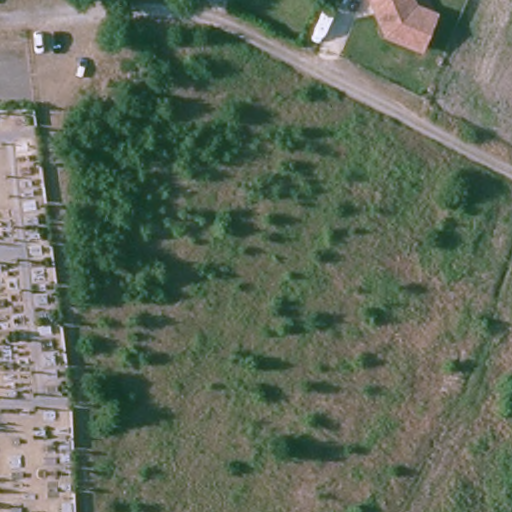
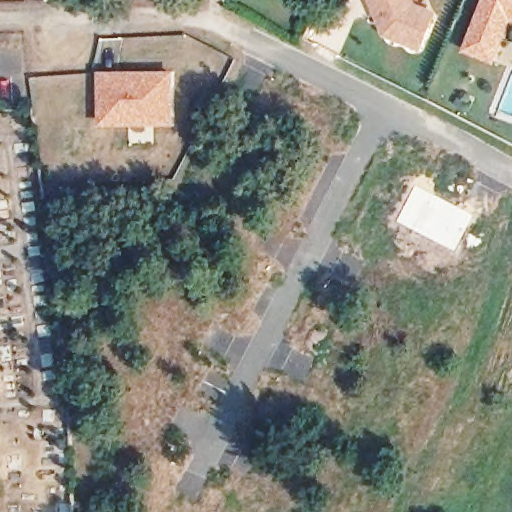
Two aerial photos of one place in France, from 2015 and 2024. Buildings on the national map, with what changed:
unchanged [(417,2),(440,11),(425,52),(388,36),(373,0),(417,0),(417,2)]
new [(497,64),(463,50),(484,0),(512,0),(512,28),(497,64)]
new [(101,126),(100,73),(177,72),(175,126),(101,126)]

